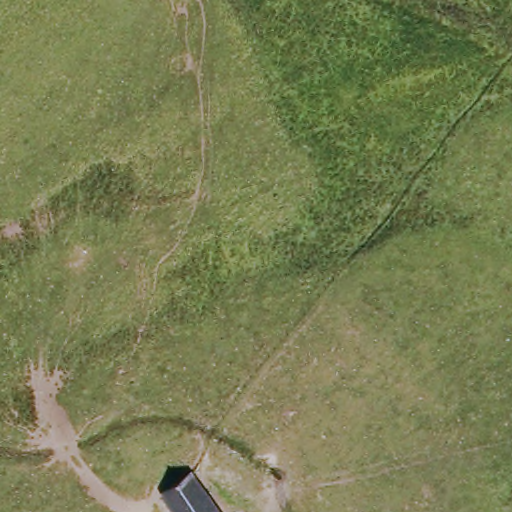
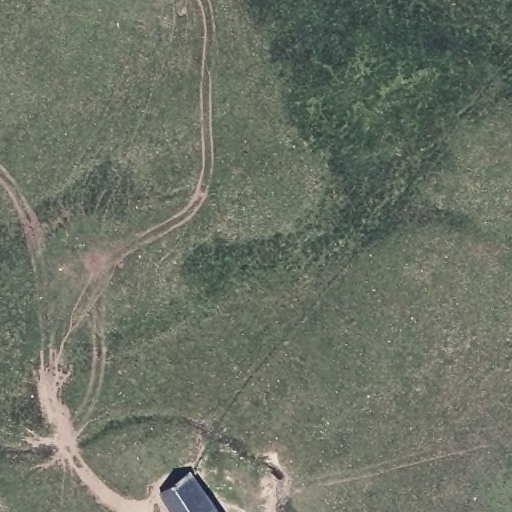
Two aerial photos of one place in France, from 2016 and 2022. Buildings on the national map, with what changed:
unchanged [(159,491),(189,471),(216,512),(174,512),(159,491)]

